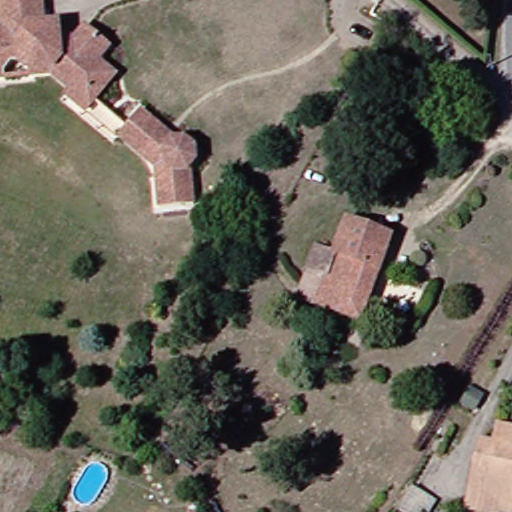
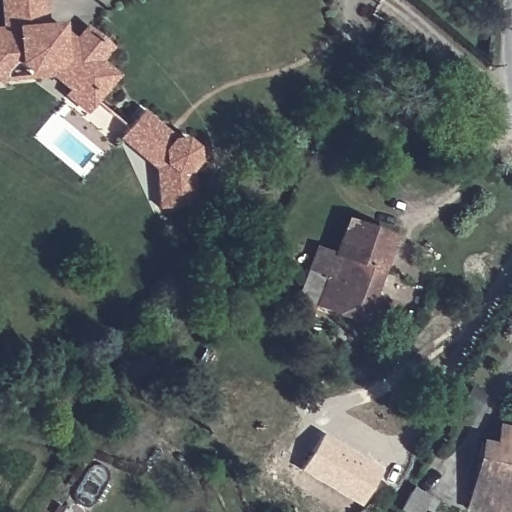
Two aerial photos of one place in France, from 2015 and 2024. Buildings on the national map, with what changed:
unchanged [(37,0),(39,25),(0,28),(0,0),(37,0)]
unchanged [(64,93),(67,88),(50,73),(25,75),(25,69),(15,61),(8,62),(0,71),(1,77),(0,78),(0,28),(39,25),(41,27),(42,26),(45,24),(48,24),(50,24),(52,25),(54,27),(55,29),(55,31),(55,34),(55,36),(59,42),(61,40),(63,39),(65,39),(67,39),(69,40),(70,40),(81,27),(105,46),(94,60),(111,74),(94,95),(82,109),(64,93)]
unchanged [(176,138),(180,138),(184,138),(187,139),(190,140),(192,142),(194,144),(195,146),(196,148),(197,151),(198,154),(197,158),(197,161),(195,163),(194,165),(192,168),(195,205),(160,207),(158,180),(157,168),(120,137),(123,132),(142,110),(176,138)]
unchanged [(294,273),(315,281),(317,272),(299,265),(307,242),(326,248),(337,217),(382,234),(352,318),(307,302),(286,294),(294,273)]
unchanged [(488,511),(457,504),(461,487),(463,488),(473,439),(486,441),(490,423),(512,428),(512,511),(490,506),(488,511)]
new [(379,473),(361,503),(301,467),(320,436),(379,473)]
unchanged [(432,512),(428,512),(425,510),(424,512),(402,512),(411,491),(436,502),(432,512)]

